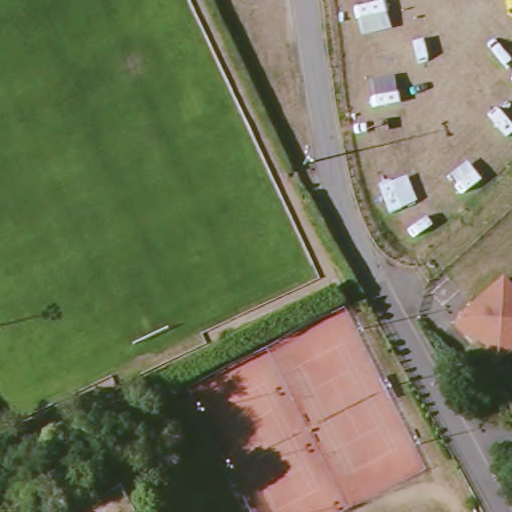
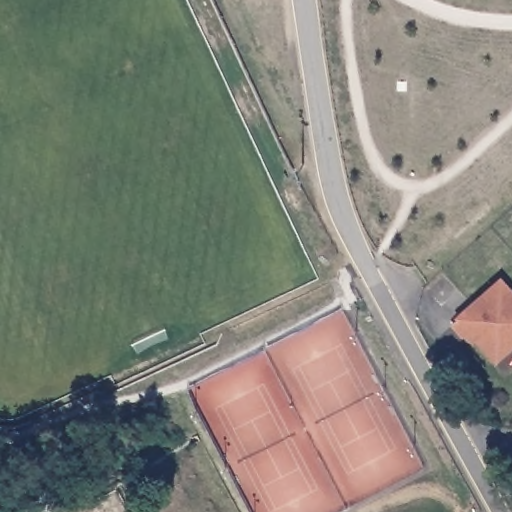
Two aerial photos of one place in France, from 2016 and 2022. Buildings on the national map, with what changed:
unchanged [(501,278),(512,291),(512,345),(510,346),(504,340),(490,352),(469,330),(463,334),(452,320),(501,278)]

